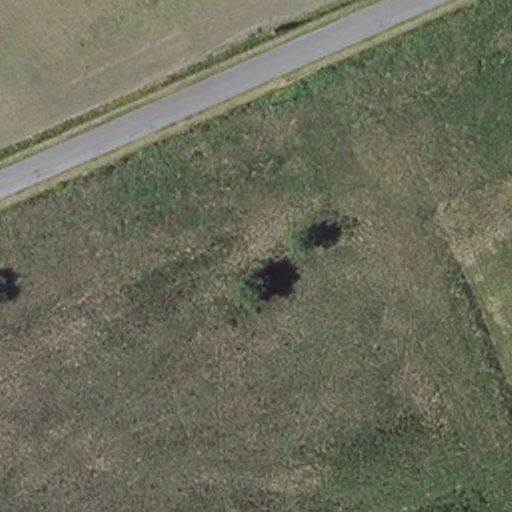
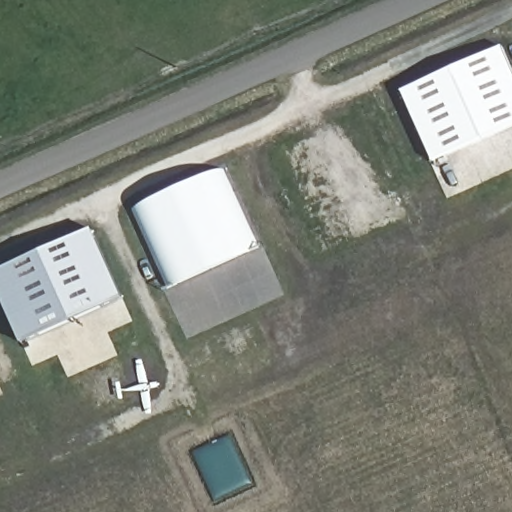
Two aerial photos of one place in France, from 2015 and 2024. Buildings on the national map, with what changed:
new [(502,48),(512,70),(512,128),(433,162),(402,92),(502,48)]
new [(168,289),(133,210),(223,169),(258,248),(168,289)]
new [(92,228),(121,295),(22,338),(0,291),(0,270),(92,228)]

